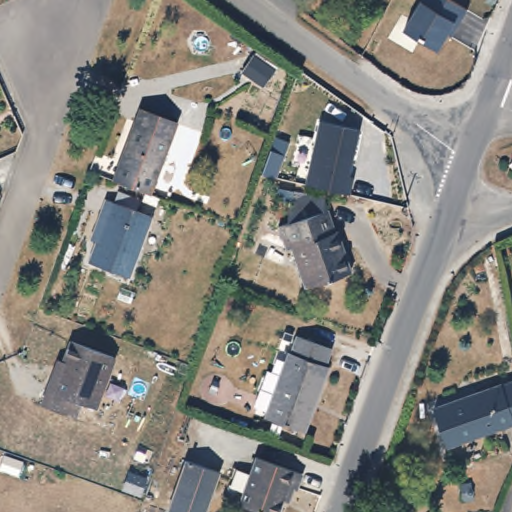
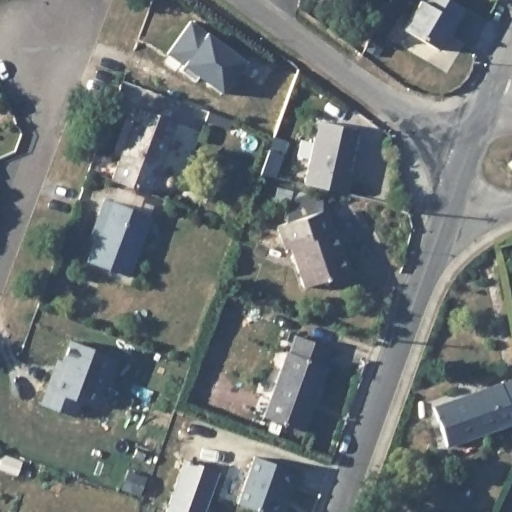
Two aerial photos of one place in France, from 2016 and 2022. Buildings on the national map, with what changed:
unchanged [(447,36),(438,50),(403,27),(422,1),(422,0),(452,0),(470,10),(453,37),(447,36)]
new [(167,53),(190,22),(246,62),(222,95),(167,53)]
unchanged [(173,121),(145,192),(107,179),(136,107),(173,121)]
unchanged [(349,194),(304,184),(318,122),(357,129),(346,177),(352,180),(349,194)]
new [(269,139),(284,144),(279,157),(270,180),(256,177),(265,152),(269,139)]
unchanged [(330,231),(335,230),(348,273),(302,287),(289,246),(281,248),(274,227),(284,223),(290,202),(311,196),(320,193),(330,231)]
unchanged [(147,215),(124,275),(84,260),(91,239),(85,236),(95,213),(100,197),(147,215)]
unchanged [(324,346),(318,363),(321,365),(298,430),(258,416),(280,351),(283,352),(289,334),(324,346)]
unchanged [(112,361),(93,411),(78,405),(72,420),(39,407),(52,376),(56,363),(61,365),(69,345),(112,361)]
unchanged [(512,378),(512,418),(509,419),(510,422),(444,445),(431,407),(512,378)]
unchanged [(275,512),(264,512),(236,502),(254,454),(301,472),(295,489),(291,487),(287,500),(280,497),(275,512)]
unchanged [(207,512),(169,512),(187,464),(221,476),(207,512)]
unchanged [(141,480),(135,498),(118,492),(124,475),(141,480)]

